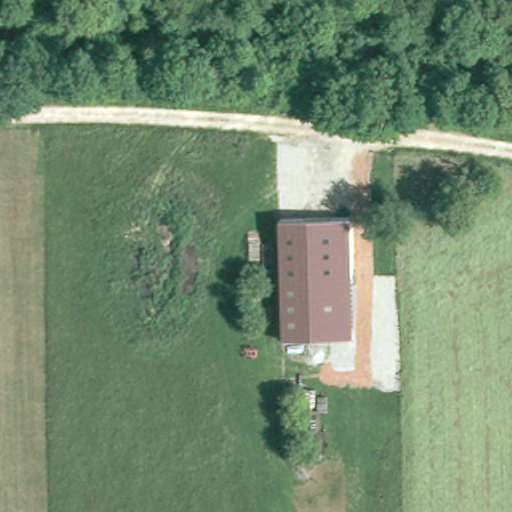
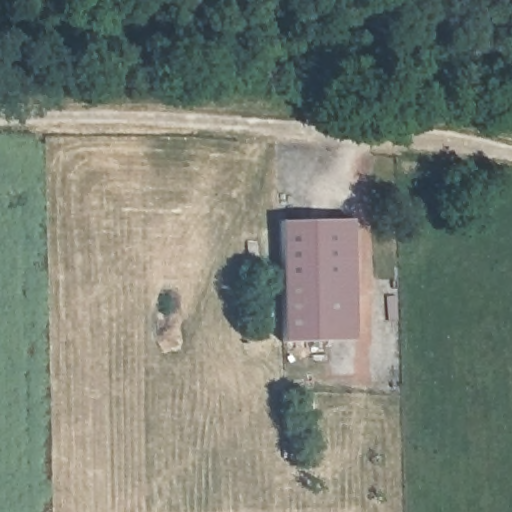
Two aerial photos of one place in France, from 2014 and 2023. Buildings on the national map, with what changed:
unchanged [(350,218),(353,339),(279,341),(278,221),(350,218)]

